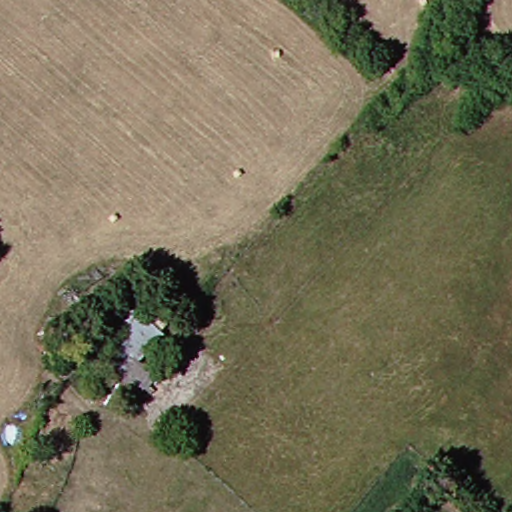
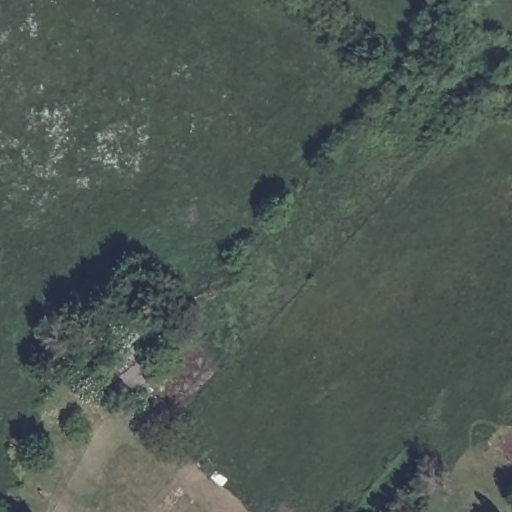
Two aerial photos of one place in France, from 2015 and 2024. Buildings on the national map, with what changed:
unchanged [(143,399),(137,393),(124,406),(113,391),(97,407),(73,387),(139,308),(177,342),(172,361),(161,367),(143,351),(135,358),(159,382),(143,399)]

